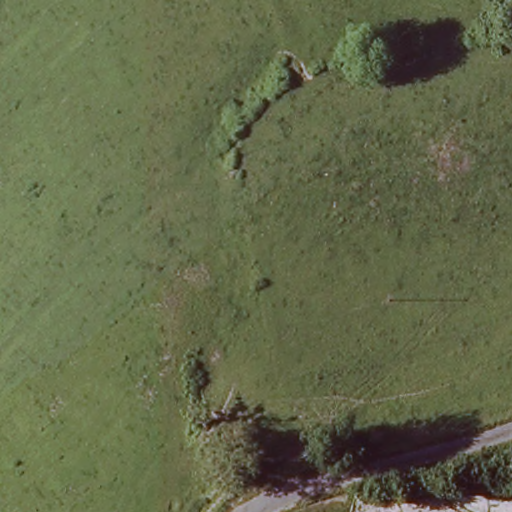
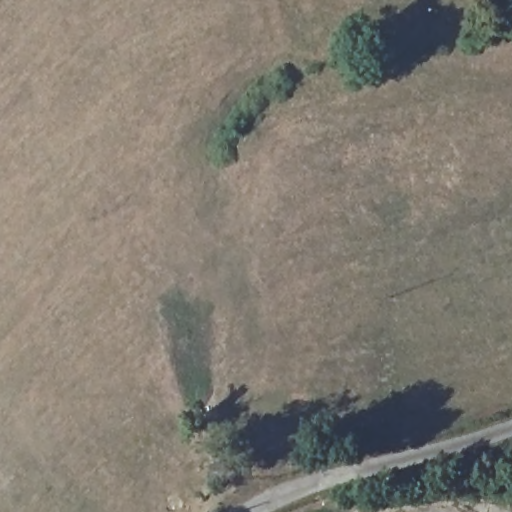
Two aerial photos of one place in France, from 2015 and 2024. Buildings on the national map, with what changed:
[]

